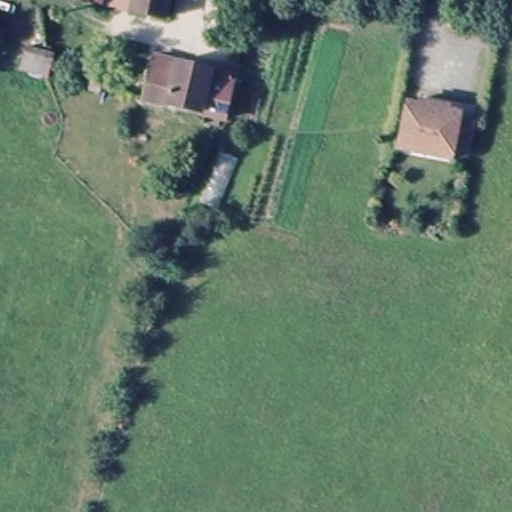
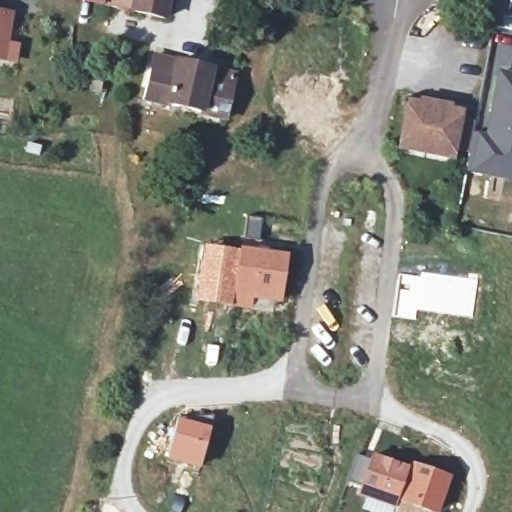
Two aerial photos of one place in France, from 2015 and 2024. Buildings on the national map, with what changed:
unchanged [(68,0),(107,0),(104,9),(68,0)]
unchanged [(115,0),(175,0),(171,22),(113,15),(115,0)]
new [(13,14),(8,45),(18,46),(16,65),(0,62),(0,11),(13,14)]
unchanged [(203,112),(203,110),(175,105),(173,107),(145,102),(152,70),(154,68),(156,59),(209,69),(210,67),(235,72),(227,116),(203,112)]
new [(471,135),(489,137),(492,119),(490,119),(498,72),(512,75),(512,164),(506,162),(505,167),(466,160),(467,153),(471,135)]
unchanged [(397,150),(398,143),(406,103),(459,114),(458,120),(473,124),(471,135),(467,153),(452,150),(452,154),(450,160),(397,150)]
new [(230,306),(195,301),(204,245),(238,250),(230,306)]
new [(239,247),(288,254),(281,303),(251,300),(250,310),(230,306),(239,247)]
new [(415,320),(394,317),(399,273),(421,275),(421,271),(478,280),(473,317),(417,310),(415,320)]
new [(166,459),(177,418),(193,415),(213,415),(210,427),(199,468),(166,459)]
new [(355,453),(368,458),(370,452),(409,465),(411,460),(452,475),(437,512),(398,512),(401,503),(396,501),(392,512),(370,512),(360,508),(365,495),(388,502),(389,498),(346,479),(355,453)]

